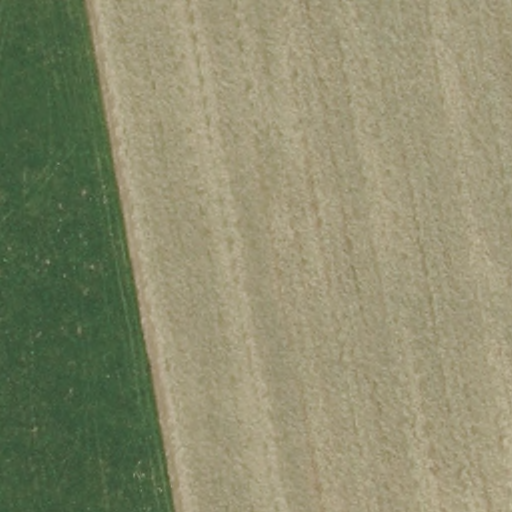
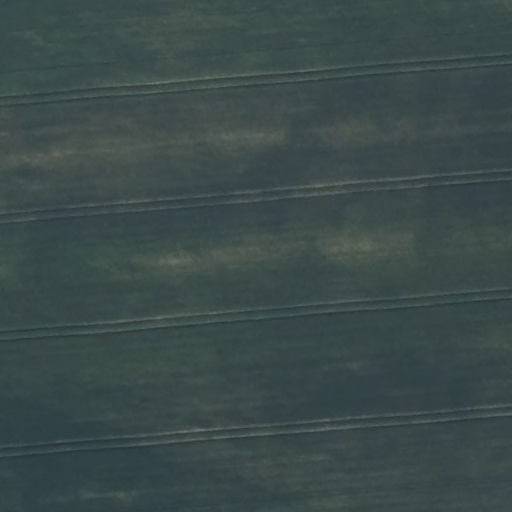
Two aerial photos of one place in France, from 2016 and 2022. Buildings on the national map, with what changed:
[]

